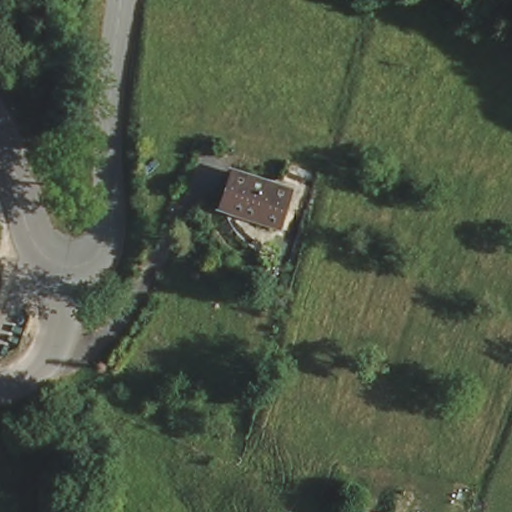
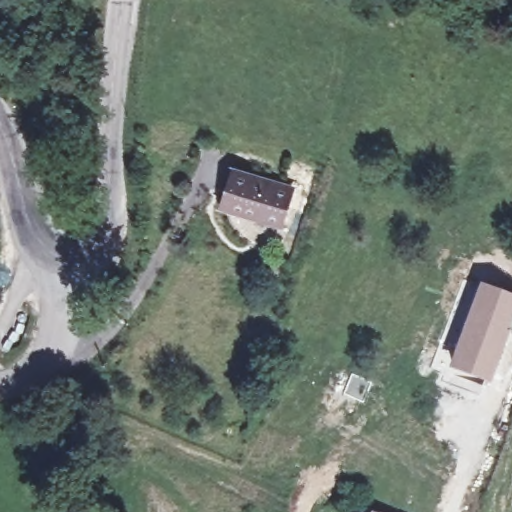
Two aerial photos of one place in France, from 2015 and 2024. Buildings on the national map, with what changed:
unchanged [(296,191),(287,222),(225,207),(234,175),(296,191)]
new [(512,332),(509,331),(489,382),(449,366),(479,282),(512,294),(512,332)]

